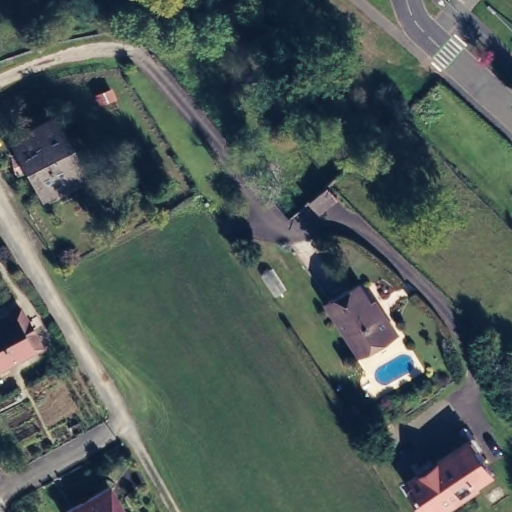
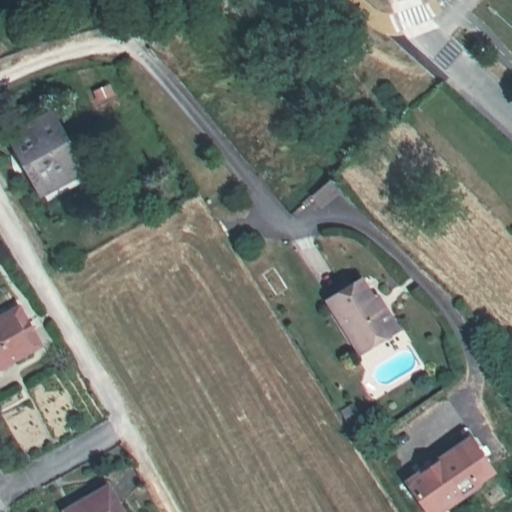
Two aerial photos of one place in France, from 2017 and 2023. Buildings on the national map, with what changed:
unchanged [(37,192),(7,135),(46,114),(77,170),(82,179),(42,200),(37,192)]
unchanged [(332,179),(341,189),(320,207),(312,196),(332,179)]
unchanged [(357,358),(354,354),(324,305),(356,285),(367,303),(372,300),(379,312),(390,331),(393,335),(357,358)]
unchanged [(7,317),(15,312),(35,349),(27,353),(0,368),(0,321),(7,317)]
unchanged [(421,512),(404,488),(467,444),(487,475),(470,487),(472,489),(438,512),(421,512)]
unchanged [(66,512),(103,490),(116,512),(66,512)]

